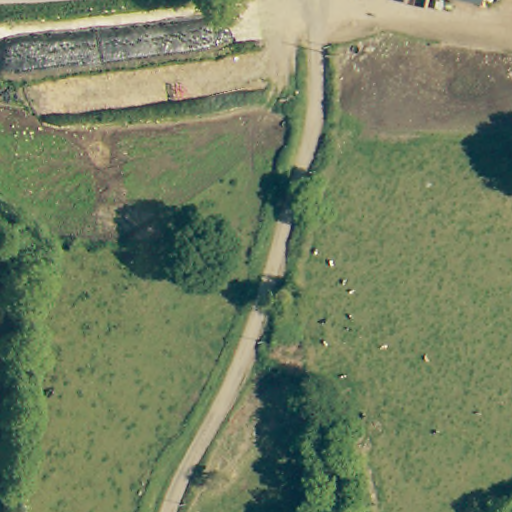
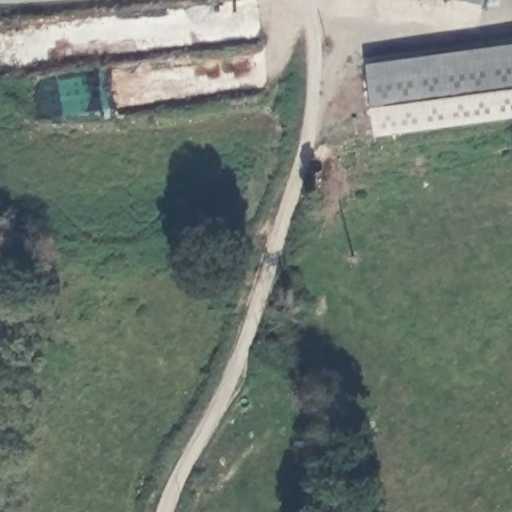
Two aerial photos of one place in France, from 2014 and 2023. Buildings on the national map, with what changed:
unchanged [(480,0),(485,0),(485,1),(480,0)]
new [(512,113),(376,132),(365,61),(512,40),(512,113)]

